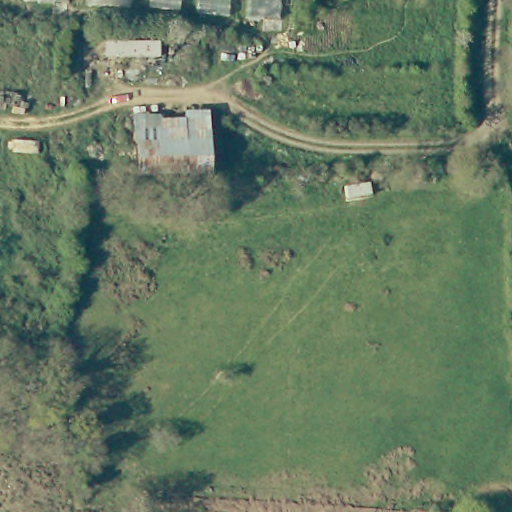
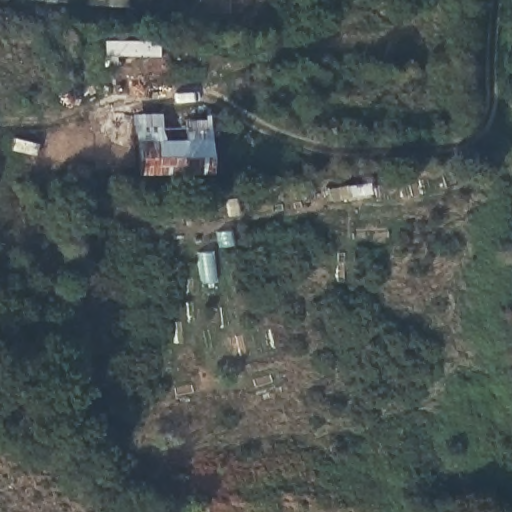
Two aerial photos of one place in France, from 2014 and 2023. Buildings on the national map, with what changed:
unchanged [(65,1),(24,0),(65,0),(65,1)]
unchanged [(127,6),(89,5),(89,0),(127,0),(127,6)]
unchanged [(208,112),(212,170),(135,175),(132,118),(208,112)]

